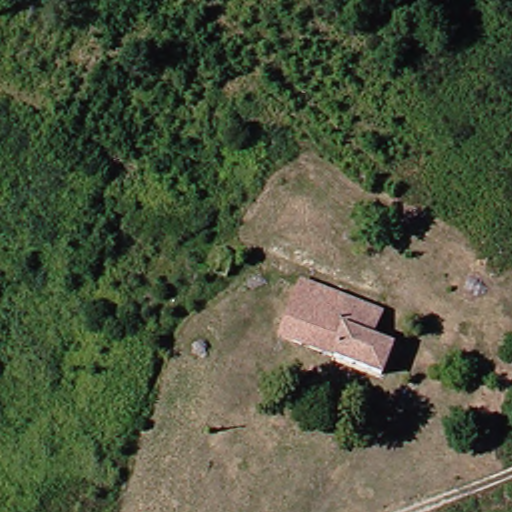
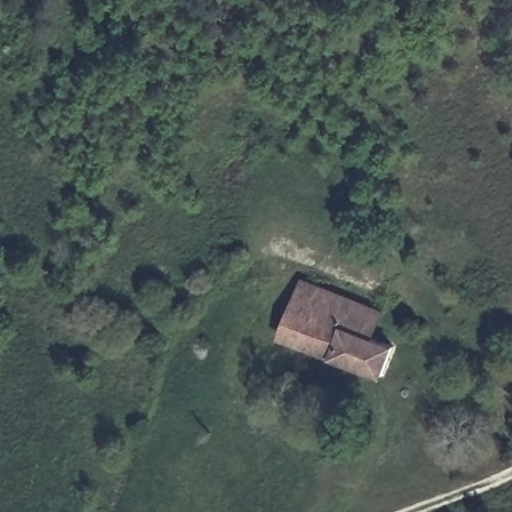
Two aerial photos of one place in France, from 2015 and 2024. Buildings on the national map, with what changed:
unchanged [(201,286),(209,263),(225,269),(216,291),(201,286)]
unchanged [(367,332),(392,341),(381,373),(278,338),(298,280),(300,281),(375,307),(367,332)]

